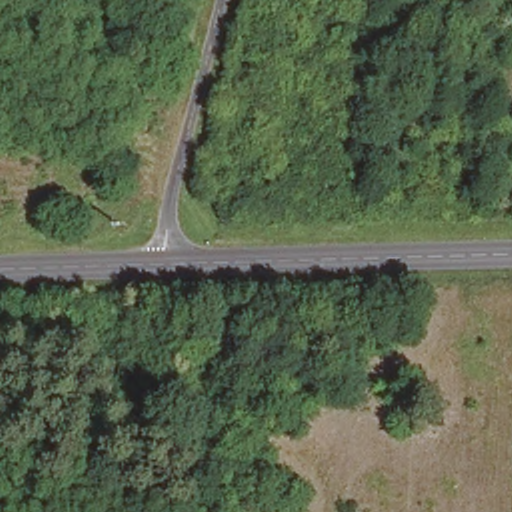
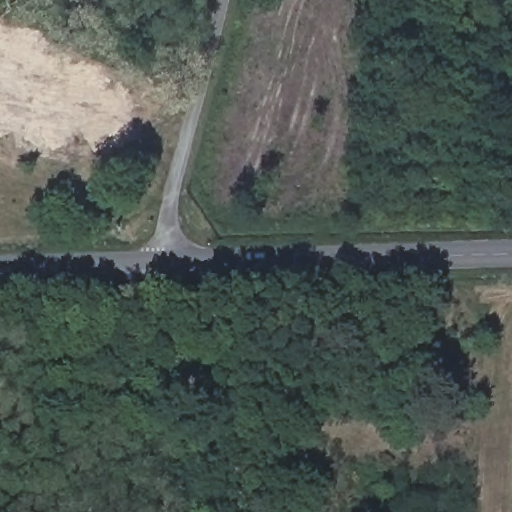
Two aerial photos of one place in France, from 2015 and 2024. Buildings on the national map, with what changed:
[]

